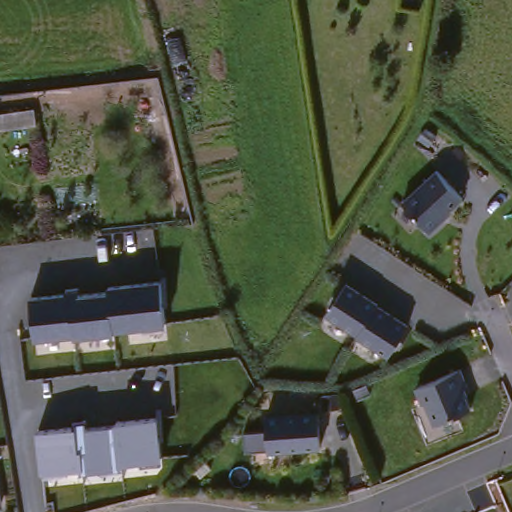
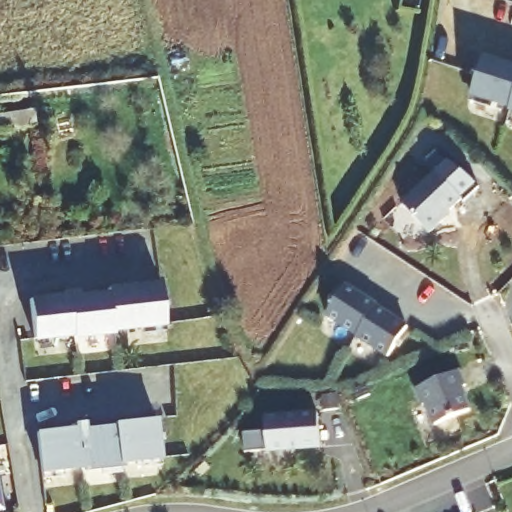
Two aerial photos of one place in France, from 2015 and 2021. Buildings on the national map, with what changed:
new [(512,69),(512,114),(508,113),(508,110),(469,97),(482,59),(512,69)]
unchanged [(0,127),(0,111),(32,107),(35,122),(0,127)]
unchanged [(400,202),(435,170),(461,197),(440,217),(441,219),(427,232),(400,202)]
unchanged [(35,341),(29,298),(157,282),(164,326),(35,341)]
unchanged [(375,304),(375,306),(406,326),(386,355),(355,334),(357,333),(325,312),(345,283),(375,304)]
unchanged [(424,405),(421,407),(415,391),(457,372),(463,387),(458,390),(467,412),(433,427),(424,405)]
unchanged [(262,422),(315,417),(317,450),(265,455),(262,422)]
unchanged [(42,476),(37,432),(157,419),(162,461),(42,476)]

